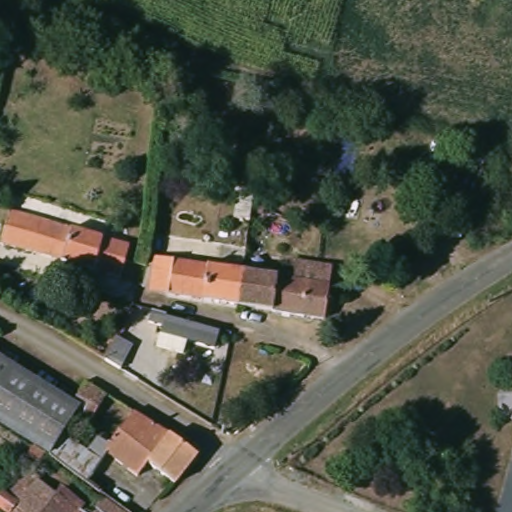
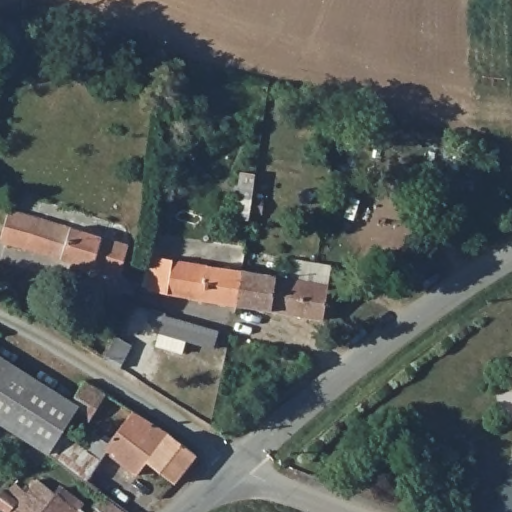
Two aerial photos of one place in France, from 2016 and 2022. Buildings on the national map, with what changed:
unchanged [(16,212),(47,220),(93,233),(123,241),(131,244),(129,251),(122,277),(0,244),(0,242),(8,214),(9,210),(16,212)]
unchanged [(252,222),(248,245),(240,244),(243,221),(252,222)]
unchanged [(151,255),(244,271),(238,306),(168,293),(168,292),(143,285),(151,255)]
unchanged [(273,310),(238,306),(244,271),(279,277),(280,269),(289,270),(291,260),(334,267),(333,274),(325,320),(273,310)]
unchanged [(152,345),(155,333),(158,326),(144,322),(148,309),(161,313),(160,317),(214,333),(210,348),(183,341),(179,353),(152,345)]
unchanged [(133,345),(119,368),(105,360),(104,359),(117,335),(133,345)]
unchanged [(75,404),(41,452),(28,440),(7,426),(0,421),(0,354),(69,400),(75,404)]
unchanged [(69,400),(83,379),(108,395),(91,424),(117,442),(136,414),(199,456),(161,497),(137,478),(131,488),(111,473),(96,498),(41,452),(75,404),(69,400)]
unchanged [(4,488),(33,467),(49,486),(83,512),(11,512),(15,508),(4,488)]
unchanged [(99,498),(128,512),(93,512),(99,498)]

